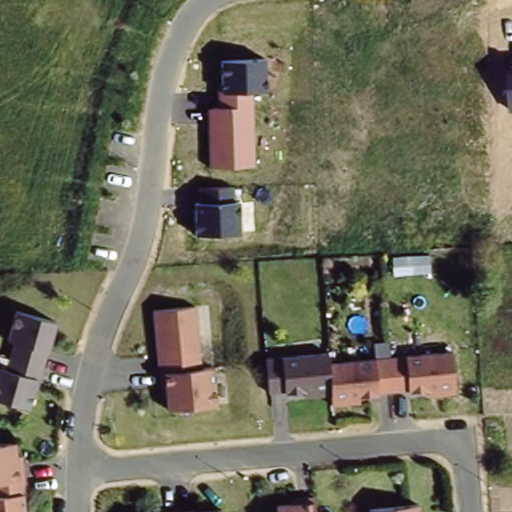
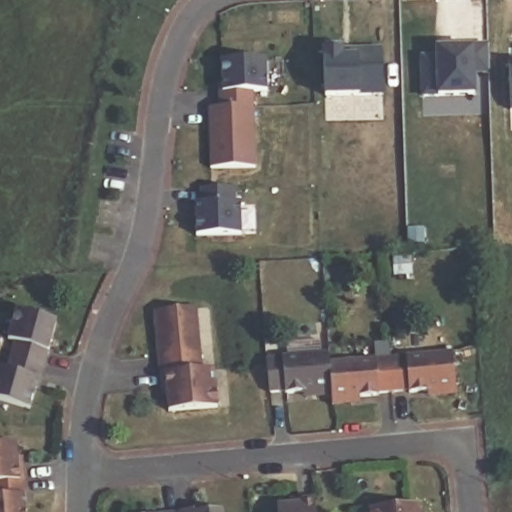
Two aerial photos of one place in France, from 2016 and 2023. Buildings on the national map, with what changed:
new [(475,74),(476,95),(437,97),(421,97),(420,56),(435,56),(435,49),(450,49),(450,44),(489,44),(490,72),(475,74)]
new [(360,95),(325,97),(321,52),(343,51),(343,48),(381,46),(383,95),(360,95)]
unchanged [(267,92),(253,95),(256,167),(210,169),(208,108),(216,107),(216,90),(221,90),(220,60),(266,57),(267,92)]
unchanged [(509,111),(508,60),(512,60),(512,111),(509,111)]
unchanged [(193,203),(197,202),(197,190),(233,187),(233,202),(240,202),(242,236),(194,238),(193,203)]
unchanged [(188,309),(195,372),(211,372),(215,407),(164,413),(160,375),(150,314),(188,309)]
unchanged [(42,353),(32,380),(23,409),(0,403),(0,373),(1,373),(10,344),(3,341),(10,313),(50,327),(42,353)]
unchanged [(321,355),(323,367),(405,360),(446,355),(450,390),(328,402),(325,390),(281,395),(261,397),(259,362),(321,355)]
unchanged [(13,478),(13,496),(20,495),(21,512),(0,512),(0,448),(10,448),(13,478)]
unchanged [(414,506),(414,512),(365,512),(365,510),(414,506)]
unchanged [(310,512),(275,512),(275,508),(310,507),(310,512)]
unchanged [(222,512),(218,512),(221,511),(222,512)]

